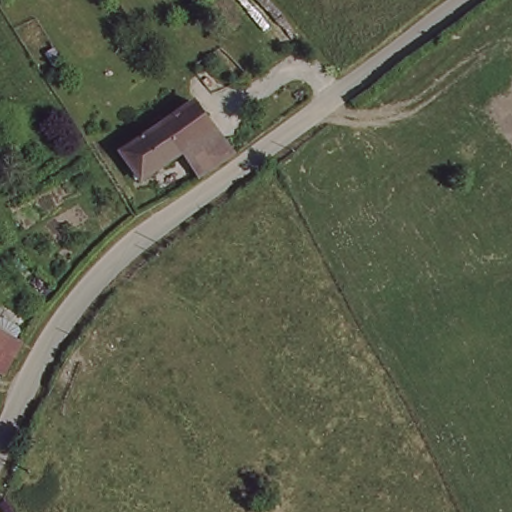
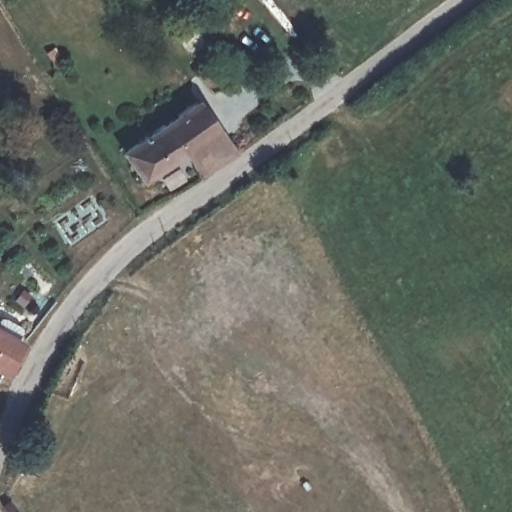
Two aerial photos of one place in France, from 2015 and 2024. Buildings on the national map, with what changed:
unchanged [(191,97),(211,124),(178,149),(146,173),(127,146),(191,97)]
unchanged [(211,124),(226,144),(193,169),(178,149),(211,124)]
unchanged [(25,340),(1,372),(0,371),(0,331),(21,339),(25,340)]

